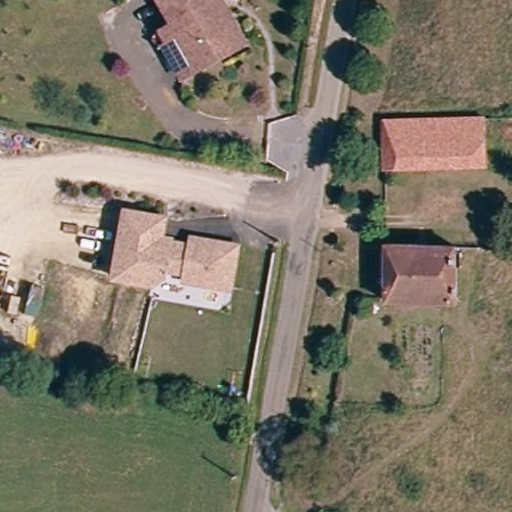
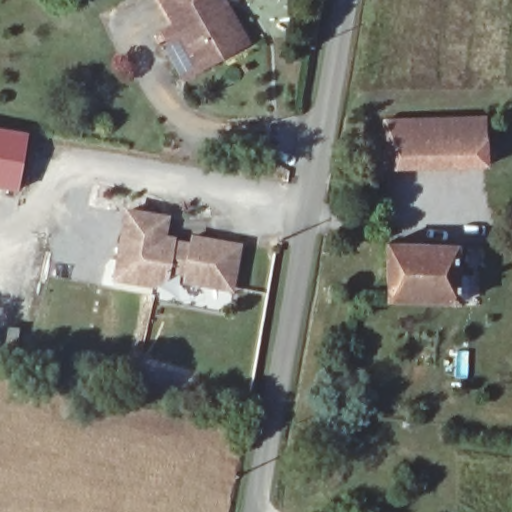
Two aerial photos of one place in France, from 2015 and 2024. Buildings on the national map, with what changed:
unchanged [(222,35),(210,42),(217,57),(182,78),(161,40),(179,30),(161,0),(204,0),(222,35)]
unchanged [(245,42),(217,57),(210,42),(222,35),(204,0),(223,0),(245,42)]
unchanged [(385,170),(385,119),(484,114),(484,163),(385,170)]
new [(17,190),(0,187),(0,128),(27,133),(17,190)]
unchanged [(184,282),(185,272),(167,271),(165,288),(111,282),(126,207),(170,215),(167,237),(189,240),(190,236),(242,244),(235,290),(184,282)]
unchanged [(455,297),(388,300),(389,244),(455,240),(455,297)]

